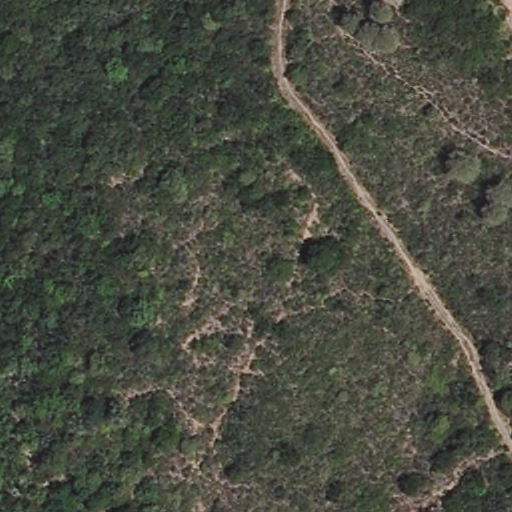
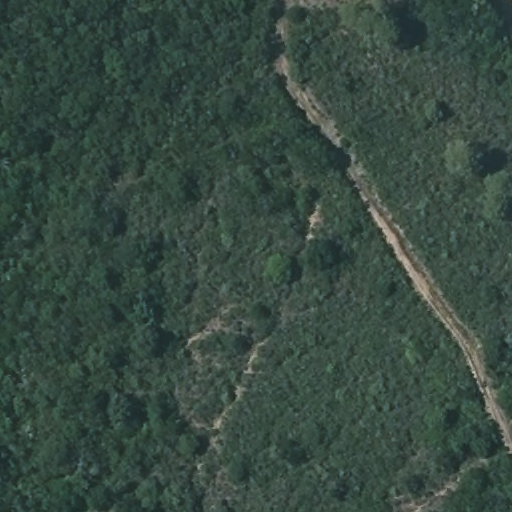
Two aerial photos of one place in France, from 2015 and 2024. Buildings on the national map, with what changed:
[]

